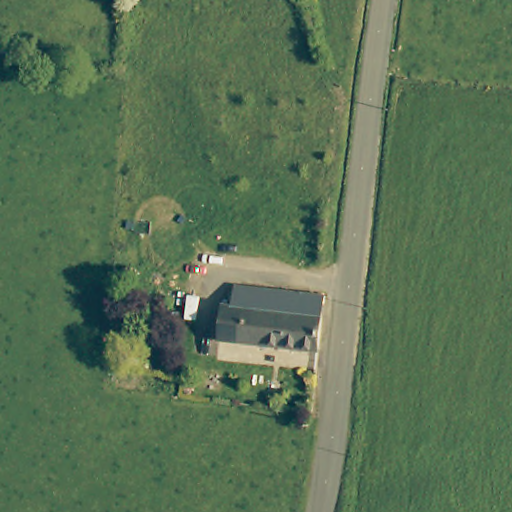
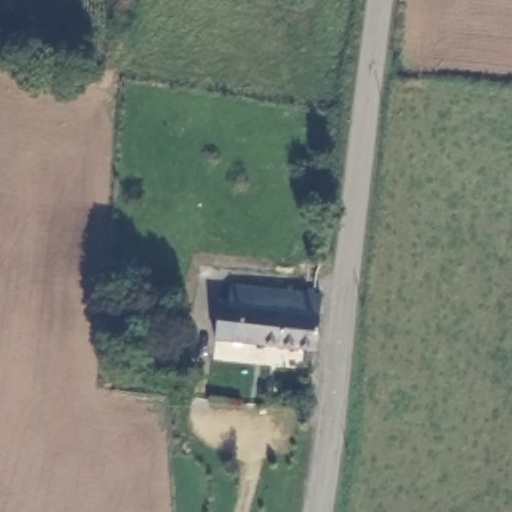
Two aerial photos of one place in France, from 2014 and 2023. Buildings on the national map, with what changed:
unchanged [(166,283),(164,301),(126,298),(128,280),(166,283)]
unchanged [(219,345),(221,308),(231,309),(233,288),(323,296),(316,354),(219,345)]

